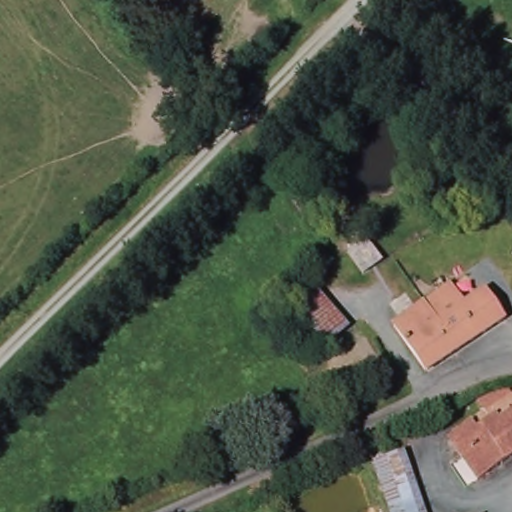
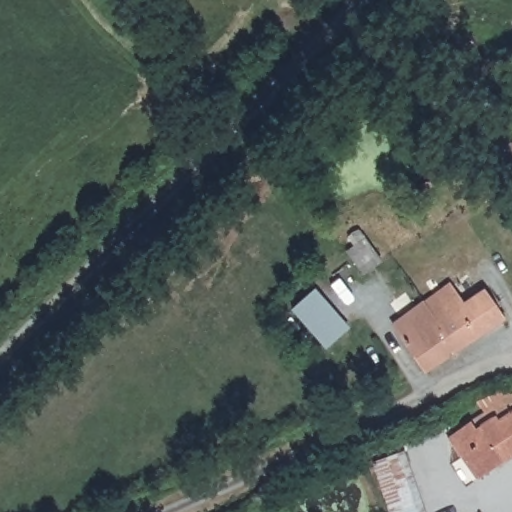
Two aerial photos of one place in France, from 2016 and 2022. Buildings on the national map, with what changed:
unchanged [(385,260),(365,275),(347,252),(367,236),(385,260)]
unchanged [(458,354),(436,326),(445,320),(429,303),(455,284),(470,304),(491,288),(511,318),(458,354)]
unchanged [(350,329),(323,349),(291,309),(315,289),(350,329)]
unchanged [(399,324),(429,303),(445,320),(436,326),(458,354),(430,372),(399,324)]
unchanged [(453,449),(460,445),(452,434),(512,394),(512,457),(477,481),(453,449)]
unchanged [(368,456),(401,443),(411,472),(427,512),(387,512),(378,485),(368,456)]

